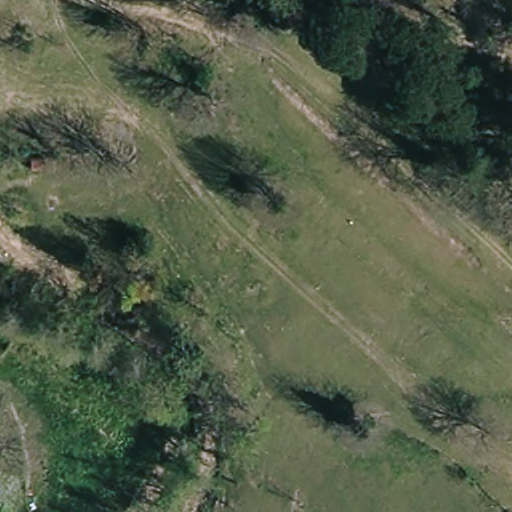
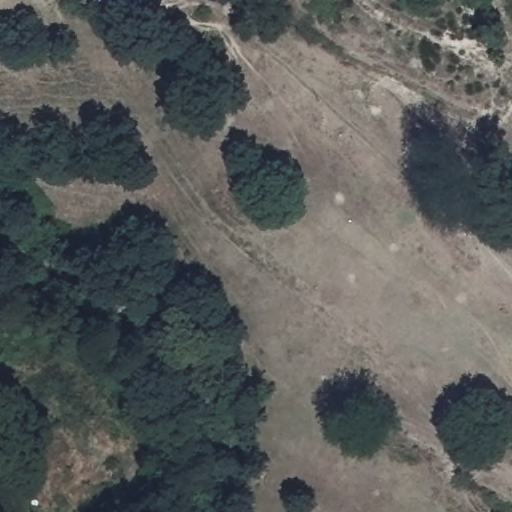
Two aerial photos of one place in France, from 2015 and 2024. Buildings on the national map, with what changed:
[]

